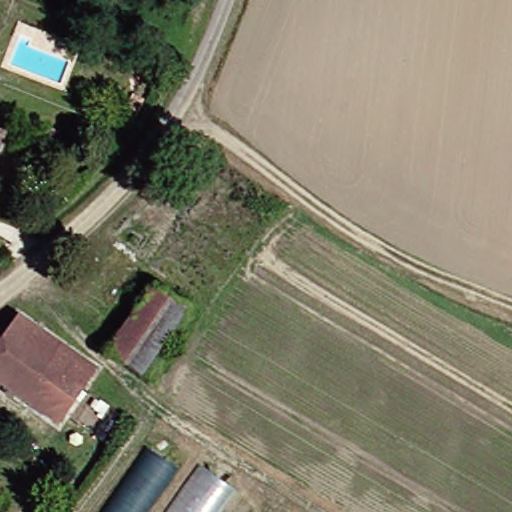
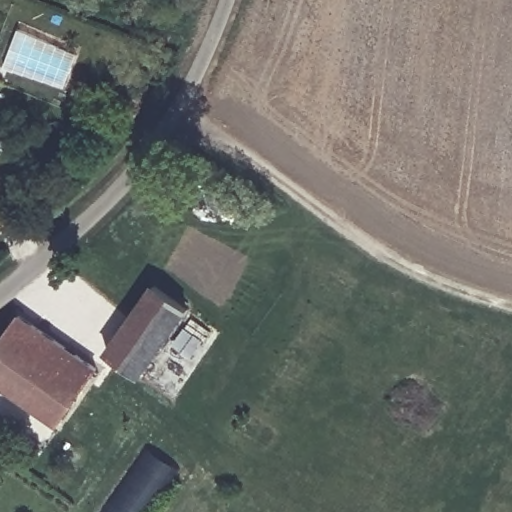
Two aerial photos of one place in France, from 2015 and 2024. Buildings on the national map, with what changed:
unchanged [(1,140),(0,145),(0,140),(1,140)]
unchanged [(147,283),(175,304),(130,371),(99,351),(147,283)]
unchanged [(97,366),(62,419),(0,378),(0,340),(17,314),(97,366)]
unchanged [(147,449),(178,469),(148,512),(103,512),(147,449)]
demolished [(200,472),(231,492),(218,512),(173,512),(200,472)]

